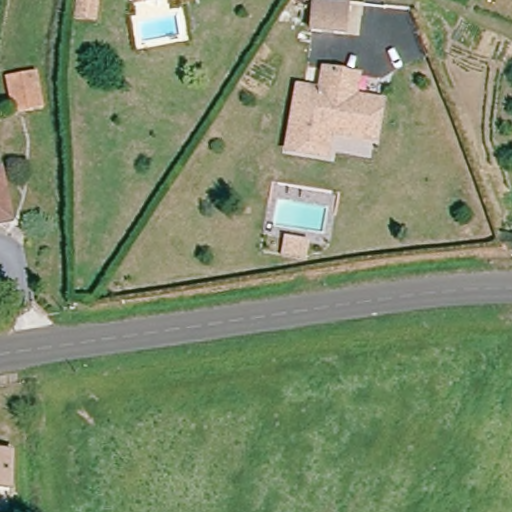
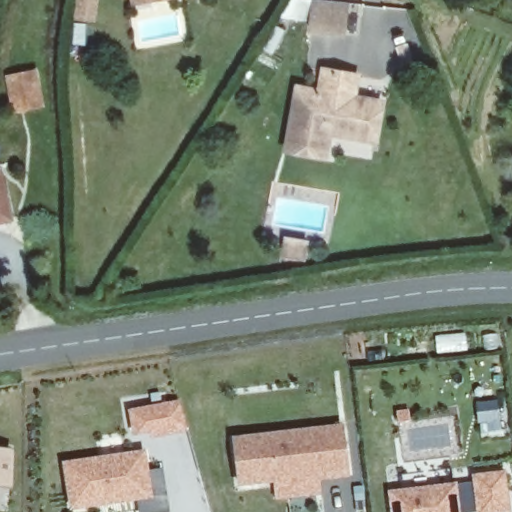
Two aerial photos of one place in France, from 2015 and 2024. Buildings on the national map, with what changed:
unchanged [(139,0),(149,0),(140,1),(139,0)]
unchanged [(343,5),(346,6),(348,7),(336,36),(306,23),(316,0),(332,0),(338,3),(343,5)]
unchanged [(12,108),(7,72),(31,69),(34,106),(12,108)]
unchanged [(365,145),(333,137),(333,131),(326,129),(318,159),(281,150),(297,88),(319,93),(324,72),(358,80),(353,101),(375,106),(365,145)]
unchanged [(9,220),(0,221),(0,168),(2,168),(6,196),(9,220)]
demolished [(4,243),(12,305),(0,307),(0,244),(4,243)]
new [(151,439),(150,433),(135,437),(130,411),(181,401),(187,431),(151,439)]
new [(241,486),(234,438),(344,425),(350,477),(241,486)]
new [(0,488),(0,450),(15,450),(13,489),(0,488)]
new [(75,512),(71,512),(62,463),(146,450),(152,501),(75,512)]
new [(477,512),(472,476),(506,471),(511,512),(477,512)]
new [(457,481),(461,512),(389,512),(387,492),(457,481)]

